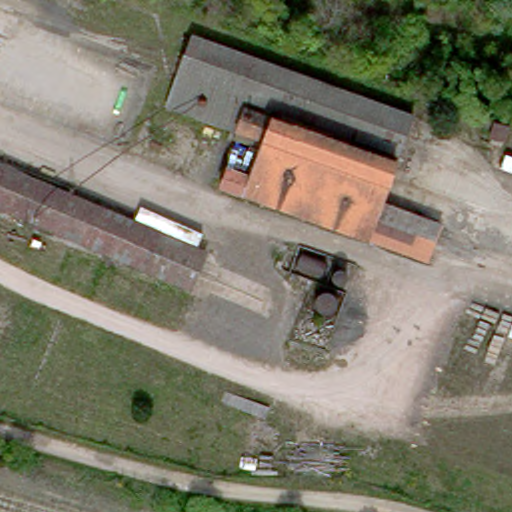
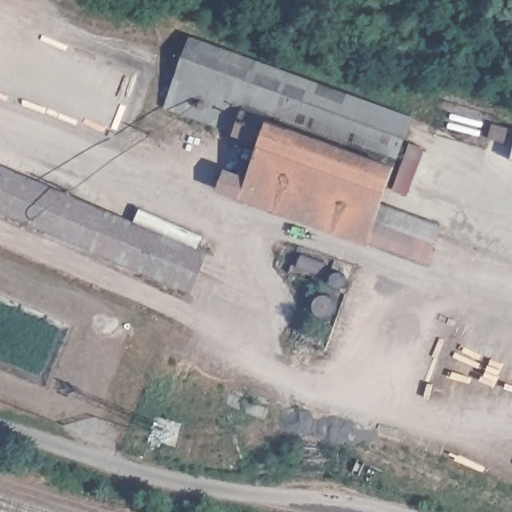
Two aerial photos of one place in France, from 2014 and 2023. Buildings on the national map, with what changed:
unchanged [(372,242),(223,189),(230,169),(253,178),(264,148),(238,139),(241,133),(173,109),(197,40),(416,118),(385,204),(430,219),(445,224),(437,244),(429,263),(372,242)]
unchanged [(0,164),(25,174),(7,212),(0,209),(0,164)]
unchanged [(25,174),(64,191),(47,229),(7,212),(25,174)]
unchanged [(64,191),(164,234),(148,272),(47,229),(64,191)]
unchanged [(164,234),(212,254),(196,293),(148,272),(164,234)]

